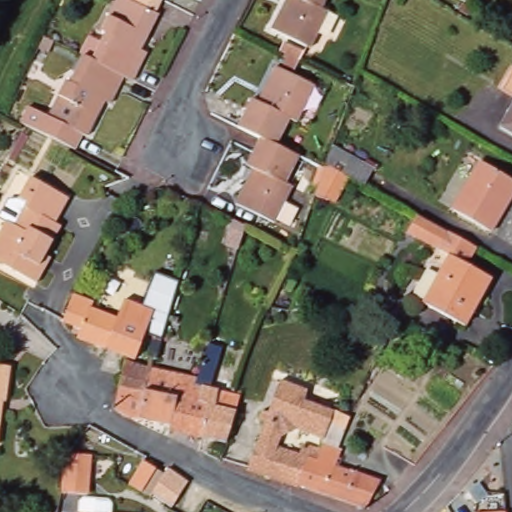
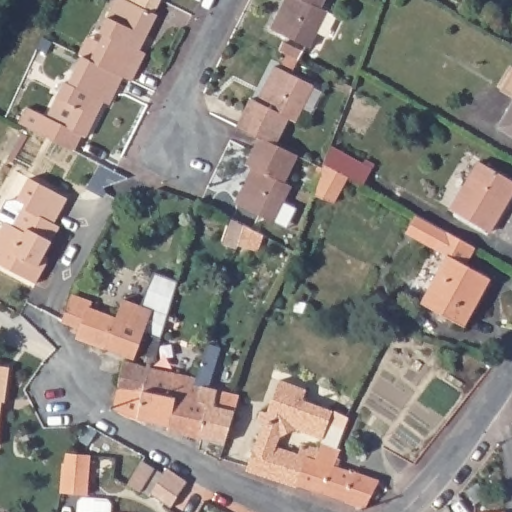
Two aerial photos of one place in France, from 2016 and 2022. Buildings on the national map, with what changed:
unchanged [(87,61),(85,61),(77,57),(74,55),(84,37),(95,42),(100,34),(96,32),(111,0),(124,0),(152,14),(141,37),(137,35),(130,47),(141,52),(127,81),(118,77),(115,75),(87,61)]
unchanged [(327,12),(309,49),(270,30),(281,7),(286,9),(291,0),(325,0),(320,9),(327,12)]
unchanged [(43,37),(52,42),(47,54),(37,50),(43,37)]
unchanged [(85,61),(87,61),(115,75),(118,77),(104,105),(94,100),(87,112),(92,115),(80,137),(76,135),(70,150),(65,147),(60,145),(22,127),(17,124),(15,122),(22,107),(42,117),(60,82),(64,84),(77,57),(85,61)]
unchanged [(237,127),(251,98),(262,104),(268,91),(263,89),(275,66),(313,84),(295,121),(289,117),(276,145),(260,137),(237,127)]
unchanged [(512,70),(512,97),(500,90),(512,70)]
unchanged [(512,106),(512,135),(500,127),(512,106)]
unchanged [(298,156),(285,184),(291,187),(274,223),(235,205),(246,182),(250,184),(256,171),(246,166),(260,137),(276,145),(298,156)]
unchanged [(318,196),(321,190),(315,187),(322,165),(328,168),(330,164),(333,154),(336,147),(377,169),(368,186),(361,182),(353,177),(339,202),(318,196)]
unchanged [(451,210),(480,161),(512,180),(512,195),(490,232),(451,210)]
unchanged [(30,178),(18,199),(26,204),(14,227),(5,222),(0,232),(0,201),(16,171),(30,178)]
unchanged [(68,199),(55,223),(60,227),(40,266),(45,268),(36,284),(0,264),(0,232),(5,222),(14,227),(26,204),(18,199),(30,178),(68,199)]
unchanged [(194,226),(182,223),(186,207),(189,199),(189,197),(200,202),(198,210),(198,211),(194,226)]
unchanged [(425,220),(476,248),(476,249),(466,265),(490,277),(463,326),(423,304),(448,257),(406,234),(416,215),(425,220)]
unchanged [(80,329),(61,322),(72,294),(94,302),(91,307),(116,317),(124,299),(154,311),(135,360),(76,338),(80,329)]
unchanged [(157,359),(150,357),(147,356),(155,331),(163,334),(157,359)]
unchanged [(206,409),(206,404),(198,402),(203,383),(195,381),(197,376),(207,343),(222,348),(209,389),(231,395),(239,397),(238,398),(238,400),(225,443),(201,438),(206,409)]
unchanged [(128,417),(125,417),(115,411),(120,387),(125,362),(148,367),(150,368),(150,370),(195,381),(203,383),(198,402),(206,404),(206,409),(201,438),(170,431),(169,431),(170,426),(139,420),(128,417)]
unchanged [(5,367),(0,402),(0,367),(5,367)]
unchanged [(334,411),(328,426),(322,442),(295,432),(280,438),(276,448),(306,459),(297,486),(297,487),(247,470),(265,421),(258,418),(261,411),(268,412),(280,380),(307,390),(303,400),(334,411)]
unchanged [(348,418),(345,428),(338,448),(341,450),(335,466),(355,473),(379,482),(365,507),(300,486),(298,487),(297,487),(297,486),(306,459),(315,462),(320,447),(322,442),(328,426),(334,411),(348,418)]
unchanged [(86,490),(61,488),(62,458),(65,459),(65,448),(66,448),(72,449),(89,451),(86,490)]
unchanged [(152,495),(150,497),(145,494),(141,492),(140,492),(140,491),(130,485),(129,485),(143,461),(155,469),(164,475),(167,469),(186,482),(170,507),(165,503),(152,495)]
unchanged [(475,505),(466,492),(478,483),(487,496),(475,505)]
unchanged [(78,510),(79,510),(80,498),(83,495),(107,496),(110,500),(110,511),(129,512),(78,512),(78,510)]

